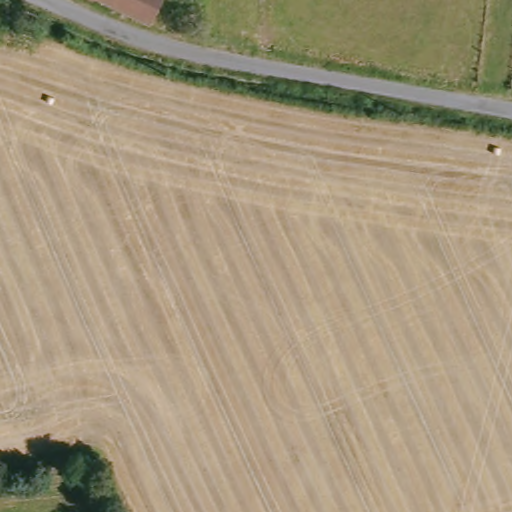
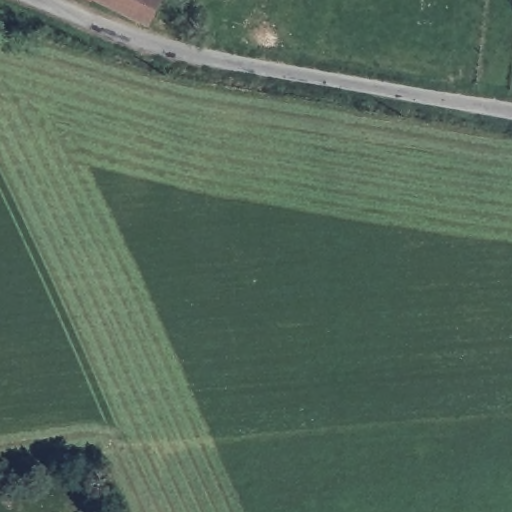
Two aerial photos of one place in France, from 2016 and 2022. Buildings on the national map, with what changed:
unchanged [(155,18),(110,0),(159,0),(155,18)]

